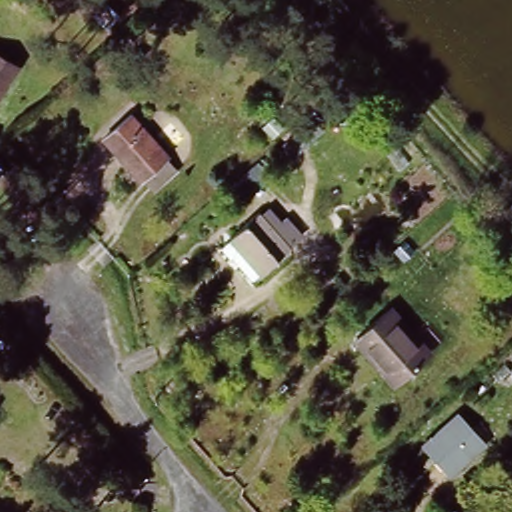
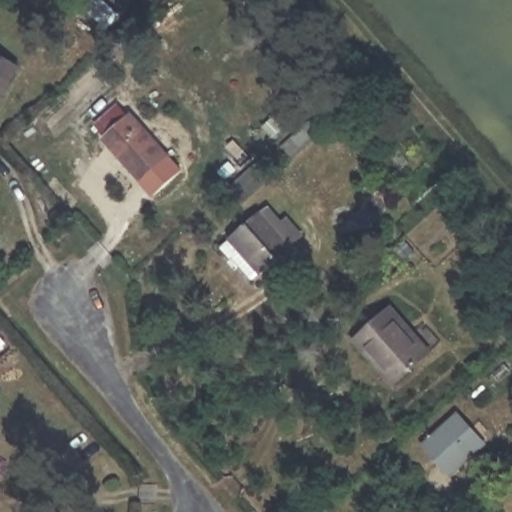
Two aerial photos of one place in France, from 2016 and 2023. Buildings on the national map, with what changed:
unchanged [(21,65),(0,103),(0,55),(7,58),(21,65)]
unchanged [(138,181),(125,166),(93,130),(119,108),(151,144),(164,159),(138,181)]
unchanged [(294,249),(261,277),(226,238),(259,209),(294,249)]
unchanged [(392,313),(412,336),(428,354),(391,387),(354,346),(392,313)]
unchanged [(455,416),(474,441),(464,451),(472,459),(455,474),(439,457),(431,464),(418,450),(455,416)]

